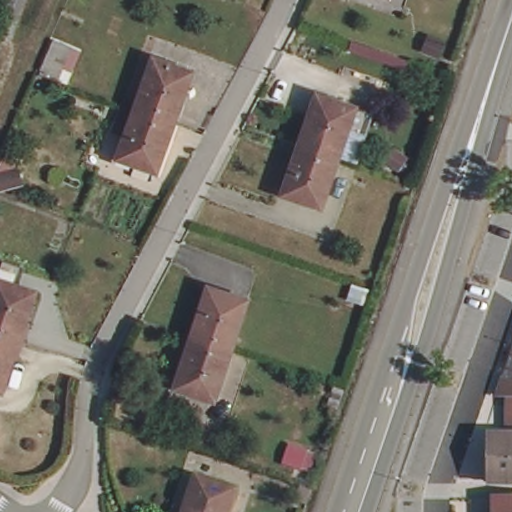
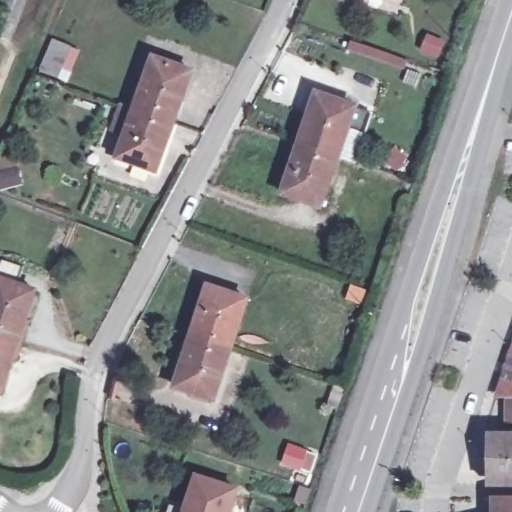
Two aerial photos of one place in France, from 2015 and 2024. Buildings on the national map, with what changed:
unchanged [(152,61),(192,76),(175,122),(135,108),(152,61)]
unchanged [(325,96),(360,109),(343,155),(309,143),(325,96)]
unchanged [(159,169),(118,154),(135,108),(175,122),(159,169)]
unchanged [(325,203),(291,191),(309,143),(343,155),(325,203)]
unchanged [(0,278),(6,262),(25,268),(20,285),(34,290),(17,337),(0,331),(0,278)]
unchanged [(204,293),(247,308),(230,355),(185,340),(204,293)]
unchanged [(17,337),(1,383),(0,383),(0,331),(17,337)]
unchanged [(230,355),(212,401),(168,385),(185,340),(230,355)]
unchanged [(512,363),(512,394),(503,391),(512,363)]
unchanged [(499,437),(504,437),(512,437),(512,484),(500,484),(499,437)]
unchanged [(184,512),(197,478),(239,493),(232,512),(184,512)]
unchanged [(512,494),(512,512),(499,512),(499,494),(512,494)]

